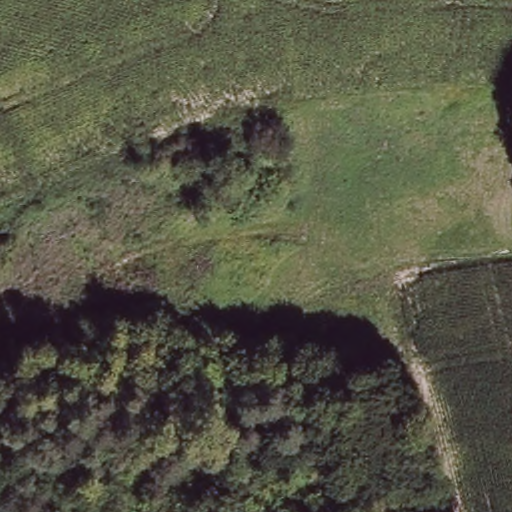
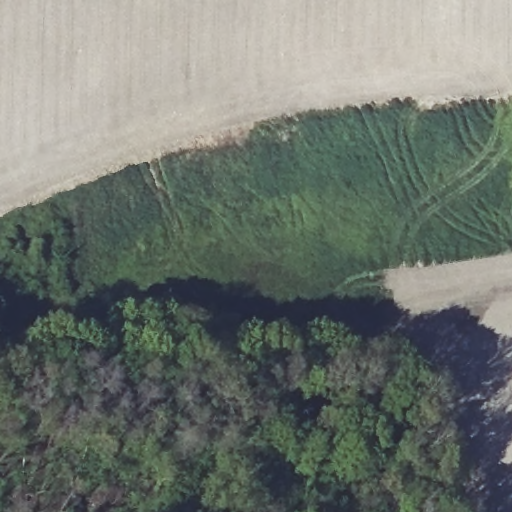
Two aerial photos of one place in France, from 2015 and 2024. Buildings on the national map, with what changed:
[]

